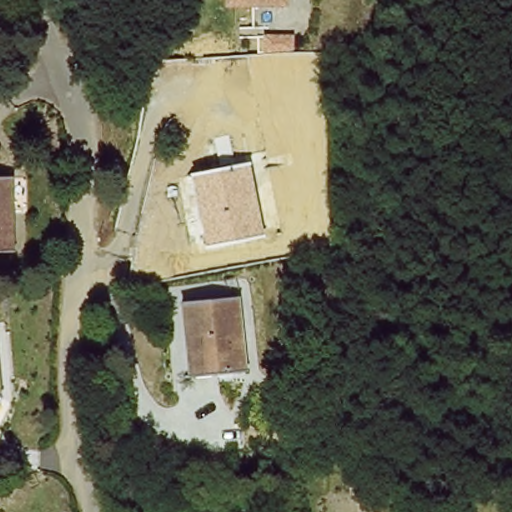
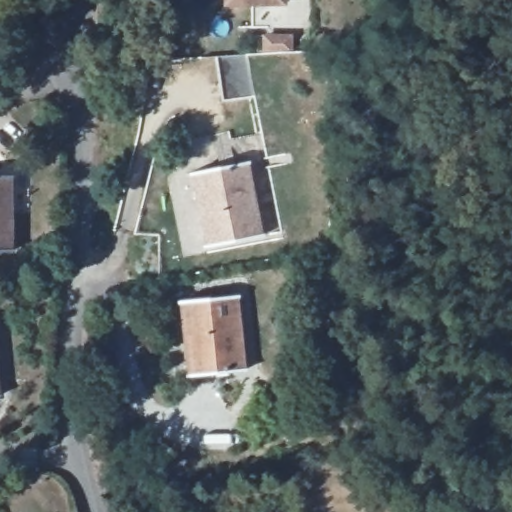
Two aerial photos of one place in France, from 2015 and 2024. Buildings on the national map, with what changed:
unchanged [(285,5),(242,5),(227,5),(226,0),(284,0),(285,5)]
new [(248,56),(255,99),(222,104),(216,58),(248,56)]
unchanged [(207,214),(211,212),(203,174),(253,164),(268,237),(214,249),(207,214)]
unchanged [(11,176),(13,252),(0,252),(0,177),(11,176)]
unchanged [(191,338),(187,338),(183,302),(237,296),(246,371),(195,377),(191,338)]
unchanged [(4,398),(0,398),(0,361),(4,398)]
unchanged [(362,487),(352,489),(350,473),(360,472),(362,487)]

